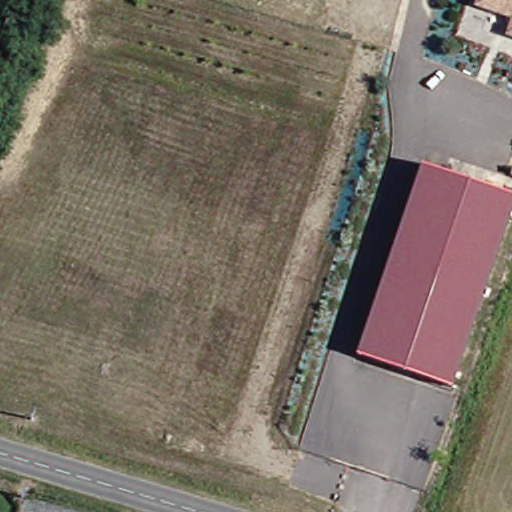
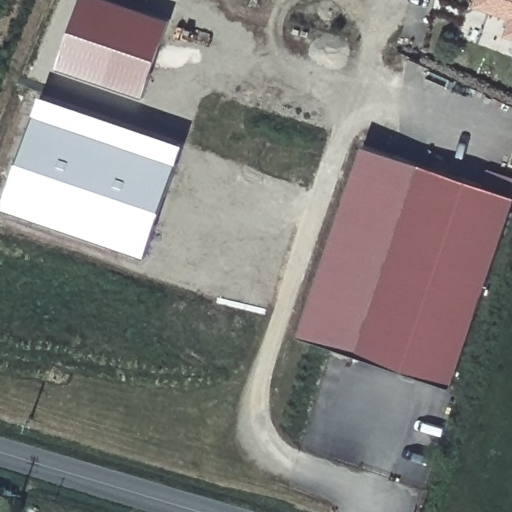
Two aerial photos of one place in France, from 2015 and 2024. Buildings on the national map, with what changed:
new [(52,71),(76,0),(96,0),(164,23),(138,100),(52,71)]
unchanged [(512,0),(512,42),(498,38),(504,20),(467,7),(470,0),(512,0)]
new [(179,146),(139,261),(0,212),(0,204),(37,97),(179,146)]
new [(365,146),(418,162),(415,168),(352,348),(302,333),(365,146)]
unchanged [(511,202),(443,390),(348,358),(415,168),(511,202)]

